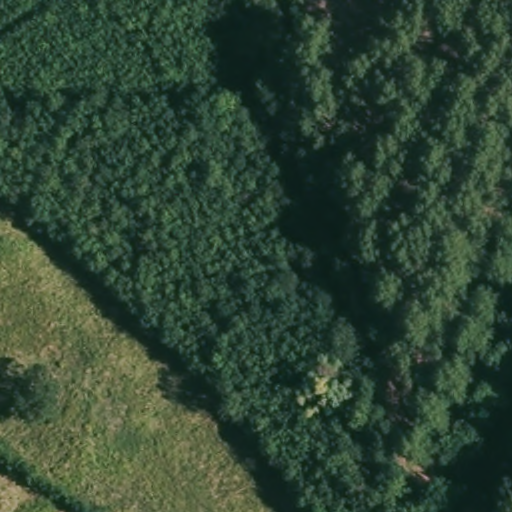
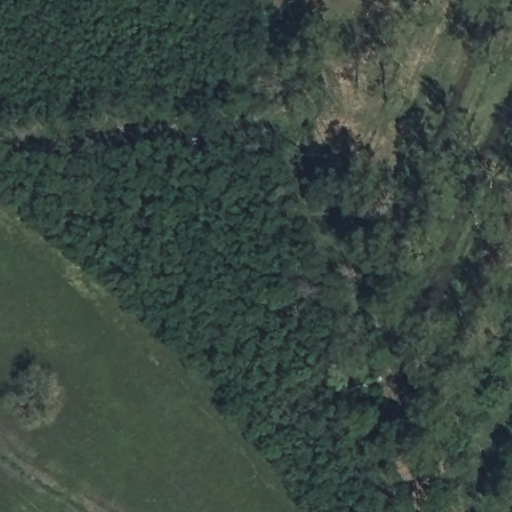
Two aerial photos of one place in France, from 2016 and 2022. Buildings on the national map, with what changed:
[]

